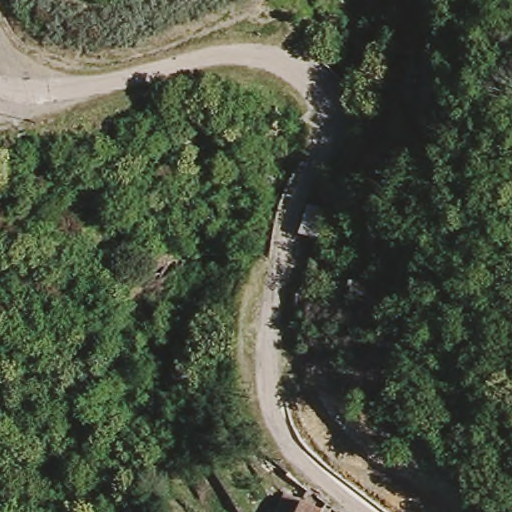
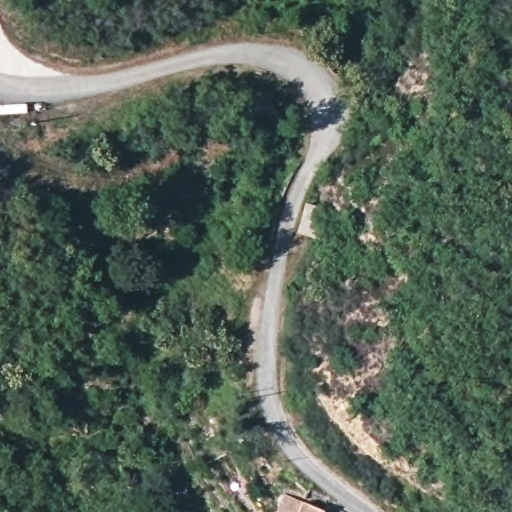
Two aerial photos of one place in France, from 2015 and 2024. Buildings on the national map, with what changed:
unchanged [(321,239),(297,234),(303,206),(326,210),(321,239)]
unchanged [(296,499),(321,510),(320,512),(291,512),(296,499)]

